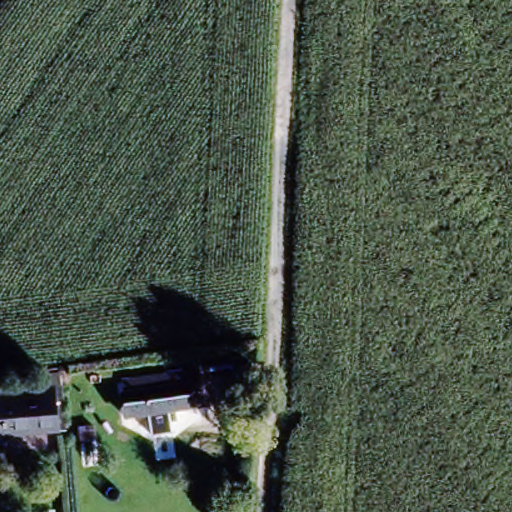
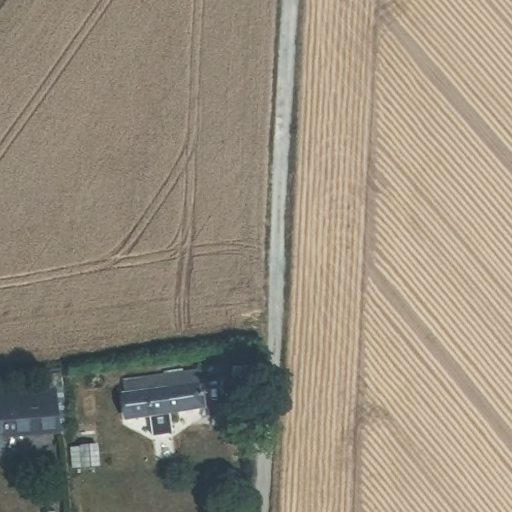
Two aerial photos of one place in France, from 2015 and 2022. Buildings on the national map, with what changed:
unchanged [(116,397),(115,383),(202,373),(204,387),(116,397)]
unchanged [(156,438),(154,416),(119,421),(116,397),(204,387),(207,410),(179,413),(181,435),(156,438)]
unchanged [(53,405),(0,413),(0,397),(51,390),(53,405)]
unchanged [(53,405),(56,427),(0,435),(0,413),(53,405)]

